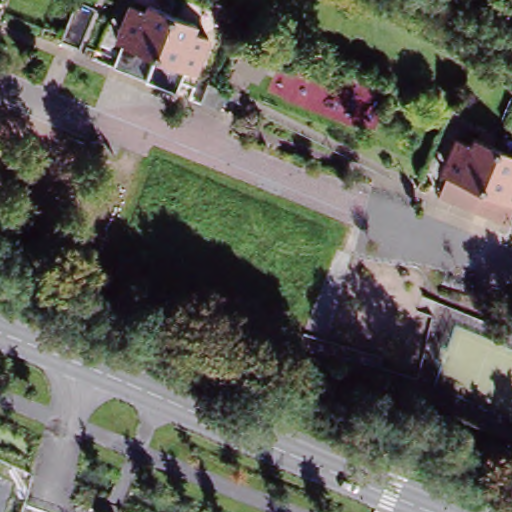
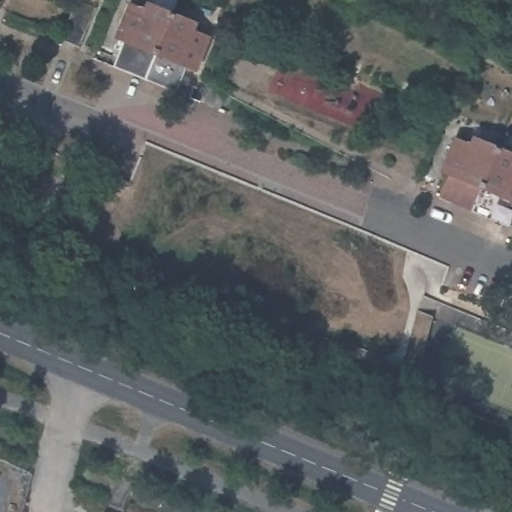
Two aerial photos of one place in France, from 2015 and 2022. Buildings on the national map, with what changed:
unchanged [(144,11),(147,4),(170,14),(145,75),(113,62),(122,40),(114,37),(118,29),(128,4),(144,11)]
unchanged [(176,87),(145,75),(170,14),(194,24),(190,31),(206,37),(195,62),(192,70),(185,67),(176,87)]
unchanged [(444,175),(456,149),(472,156),(475,149),(499,159),(476,214),(443,200),(449,185),(441,181),(444,175)]
unchanged [(476,214),(499,159),(512,165),(512,226),(511,229),(476,214)]
unchanged [(472,457),(486,462),(481,472),(467,467),(472,457)]

